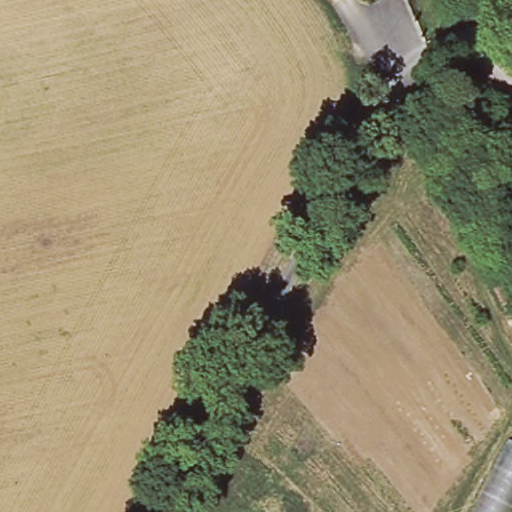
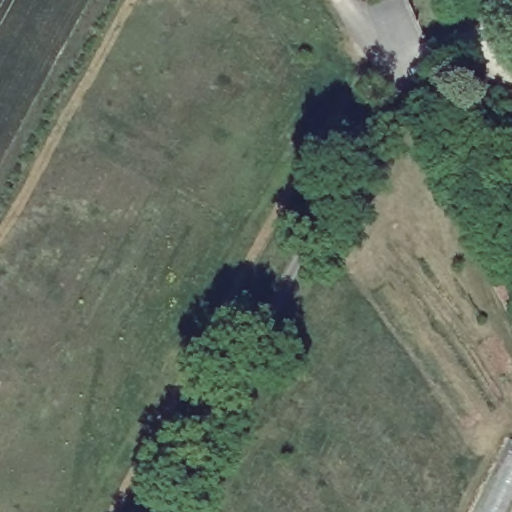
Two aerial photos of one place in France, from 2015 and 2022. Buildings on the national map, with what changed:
unchanged [(510,435),(512,436),(512,493),(502,512),(471,512),(510,435)]

